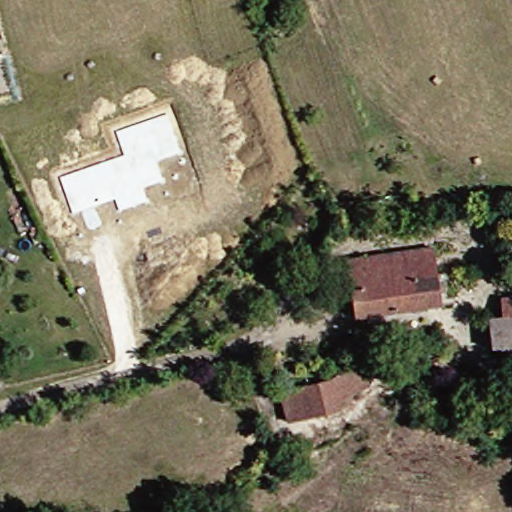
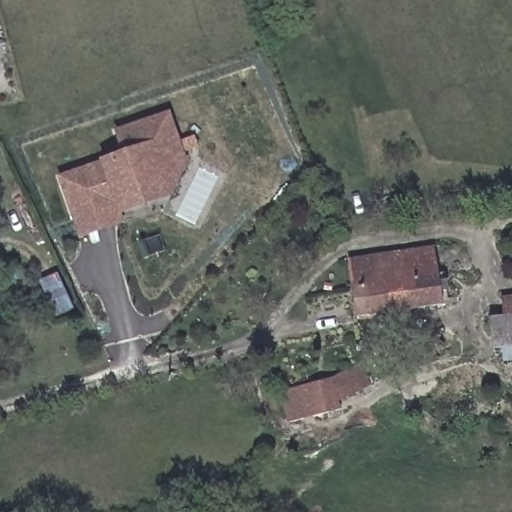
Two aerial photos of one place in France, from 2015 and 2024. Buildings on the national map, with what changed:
new [(188,162),(172,198),(121,215),(124,225),(78,239),(58,175),(99,160),(122,153),(114,130),(170,110),(188,162)]
unchanged [(354,262),(383,255),(436,245),(442,267),(451,297),(439,300),(369,316),(360,286),(354,262)]
unchanged [(512,321),(512,348),(503,350),(496,325),(512,321)]
unchanged [(395,360),(390,344),(424,332),(427,331),(432,347),(424,350),(395,360)]
unchanged [(290,388),(339,377),(365,365),(372,379),(349,387),(352,400),(342,402),(344,410),(299,423),(290,388)]

